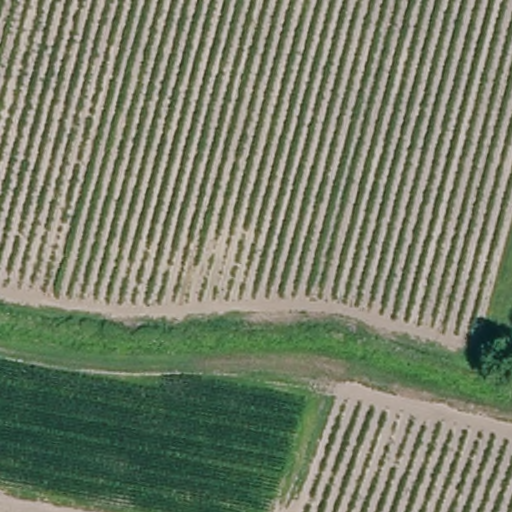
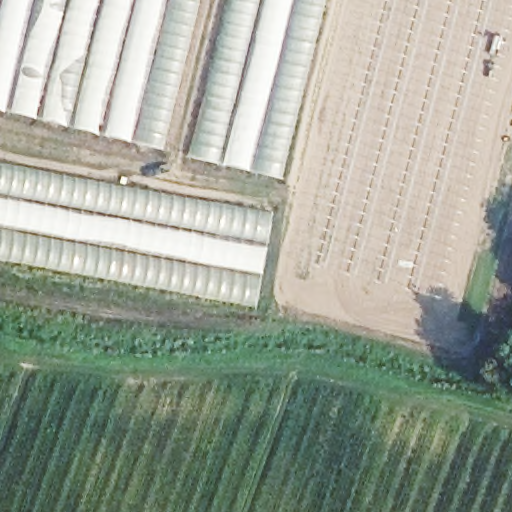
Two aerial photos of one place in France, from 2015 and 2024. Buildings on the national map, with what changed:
new [(127,141),(0,111),(0,0),(161,0),(127,141)]
new [(161,0),(209,0),(203,26),(191,61),(187,60),(186,63),(173,103),(161,149),(127,141),(161,0)]
new [(218,20),(224,0),(328,0),(301,95),(280,178),(186,156),(218,20)]
new [(272,210),(265,246),(0,196),(0,160),(272,210)]
new [(265,246),(260,272),(195,262),(135,249),(69,239),(0,226),(0,196),(265,246)]
new [(69,239),(135,249),(195,262),(260,272),(254,307),(0,260),(0,226),(69,239)]

